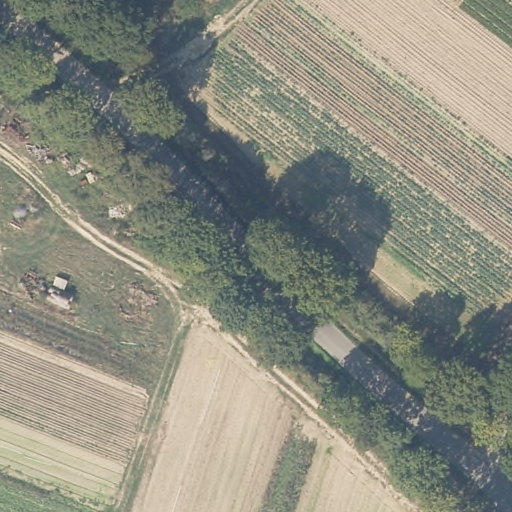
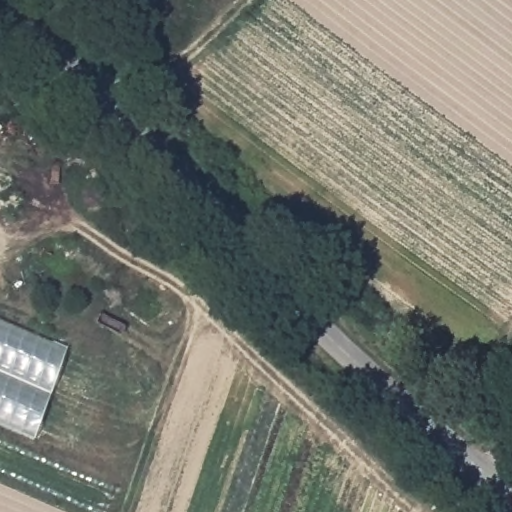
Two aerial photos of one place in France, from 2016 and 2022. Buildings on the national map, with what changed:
new [(0,319),(68,349),(34,440),(0,425),(0,319)]

